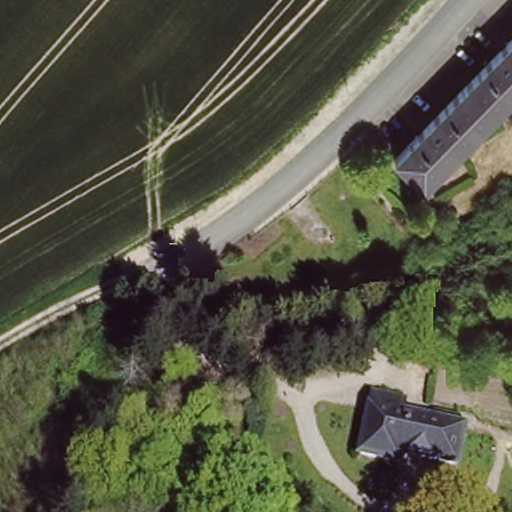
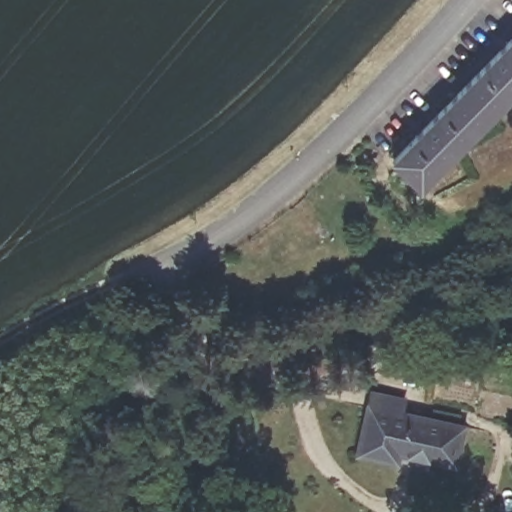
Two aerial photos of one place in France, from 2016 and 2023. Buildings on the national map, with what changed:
unchanged [(512,36),(512,94),(422,187),(395,162),(512,36)]
unchanged [(367,389),(417,395),(415,407),(467,426),(456,468),(391,452),(387,463),(355,452),(367,389)]

